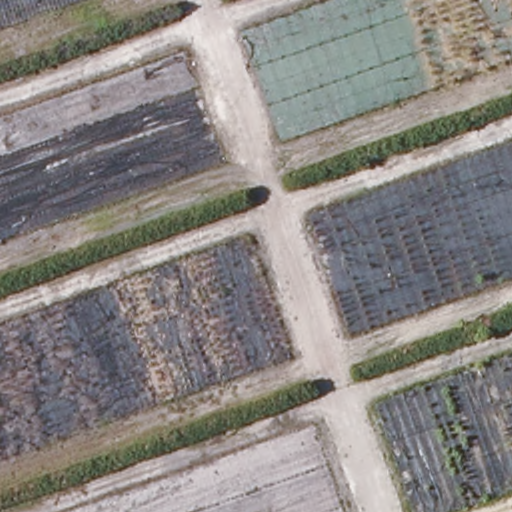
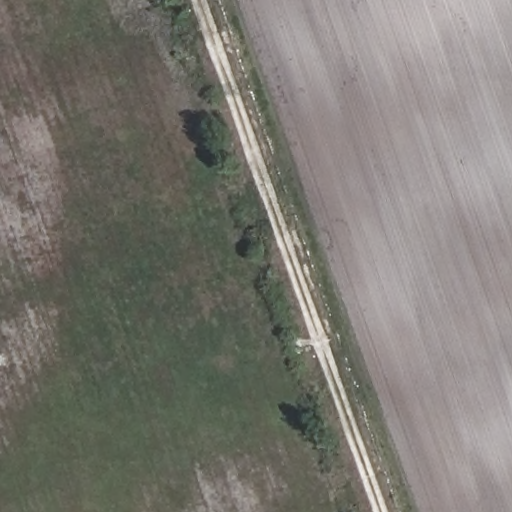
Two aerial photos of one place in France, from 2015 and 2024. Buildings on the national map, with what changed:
[]

